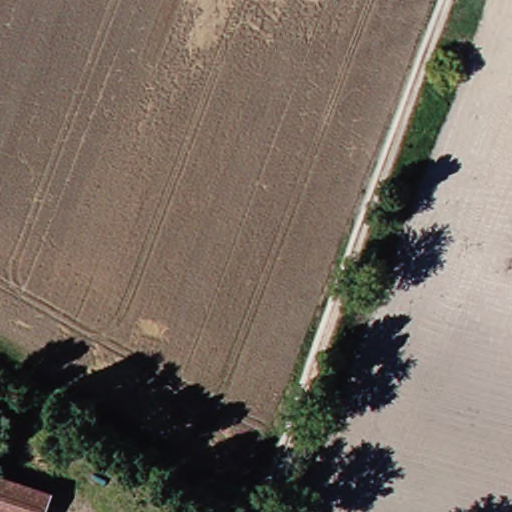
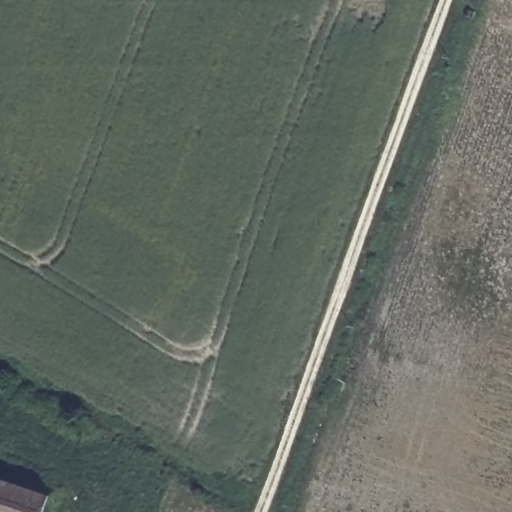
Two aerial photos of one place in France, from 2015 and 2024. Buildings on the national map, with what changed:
unchanged [(40,489),(32,512),(0,512),(0,475),(40,489)]

